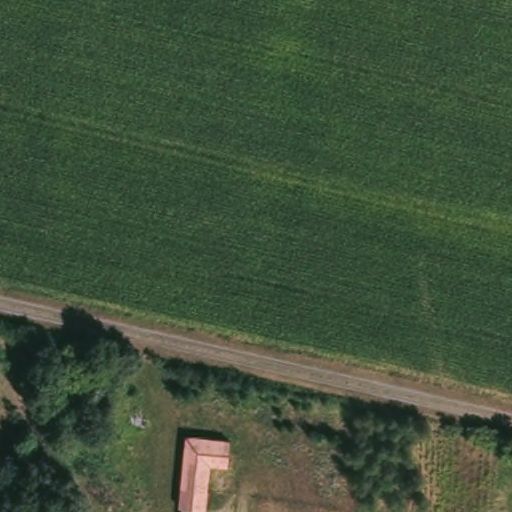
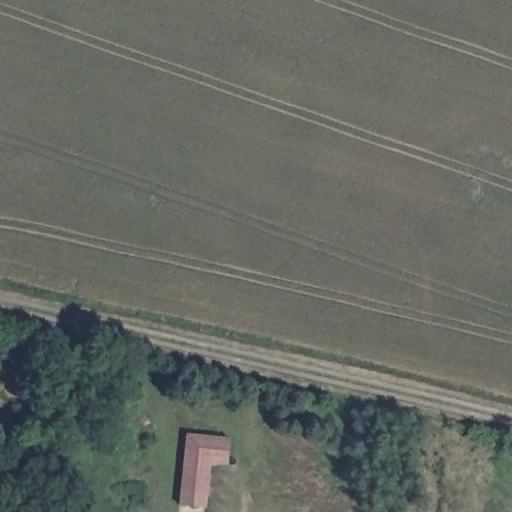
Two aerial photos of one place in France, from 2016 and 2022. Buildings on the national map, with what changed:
unchanged [(206,464),(202,510),(195,509),(194,512),(179,512),(180,507),(177,507),(181,465),(184,437),(193,437),(224,441),(226,441),(225,452),(225,458),(224,466),(206,464)]

